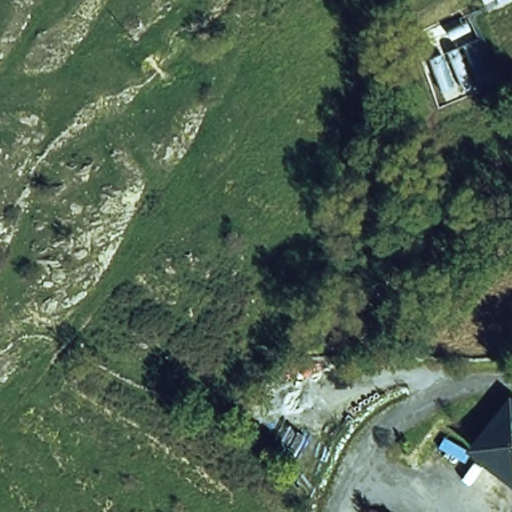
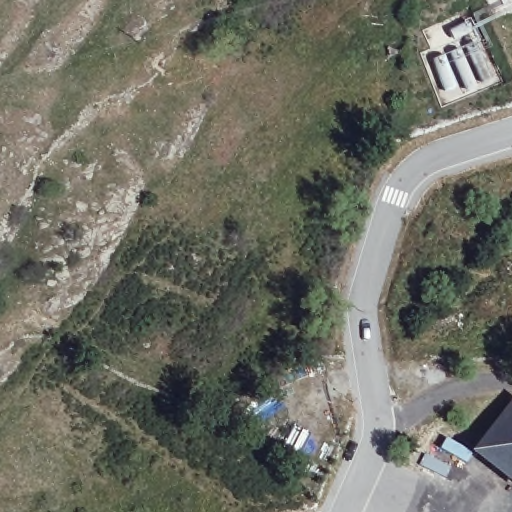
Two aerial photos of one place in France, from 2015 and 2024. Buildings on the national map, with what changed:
unchanged [(475,450),(512,404),(512,479),(475,450)]

